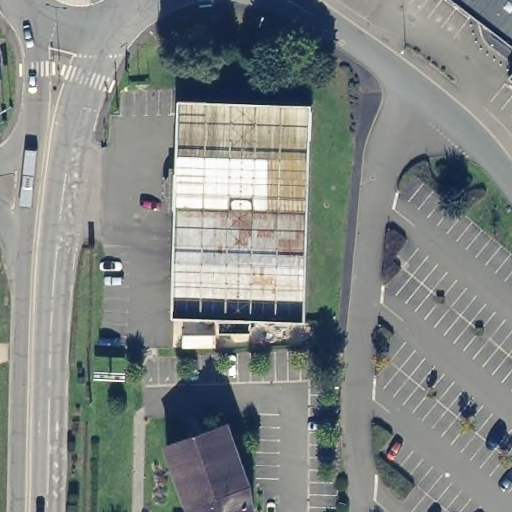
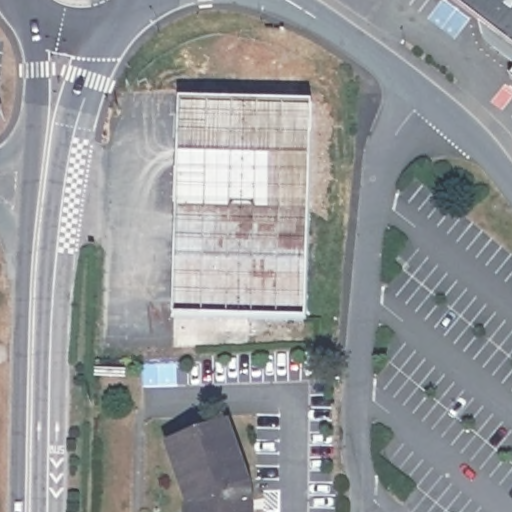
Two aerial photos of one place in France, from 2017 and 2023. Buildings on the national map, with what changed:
unchanged [(512,41),(459,0),(512,0),(512,41)]
unchanged [(512,70),(512,75),(509,73),(512,70)]
unchanged [(183,101),(310,102),(308,140),(329,140),(328,168),(308,167),(302,311),(176,307),(183,101)]
unchanged [(233,430),(255,489),(260,512),(192,512),(171,451),(233,430)]

